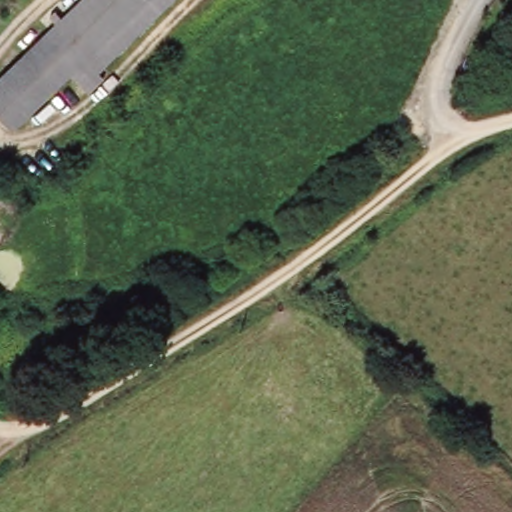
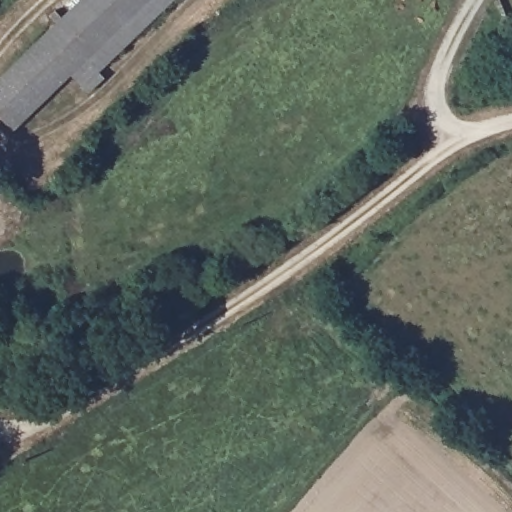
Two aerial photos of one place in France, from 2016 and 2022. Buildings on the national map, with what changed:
unchanged [(76,71),(16,125),(0,108),(0,80),(86,0),(179,0),(105,69),(109,74),(93,89),(76,71)]

